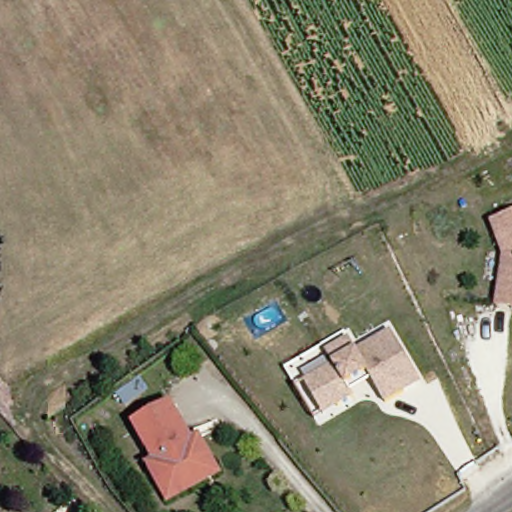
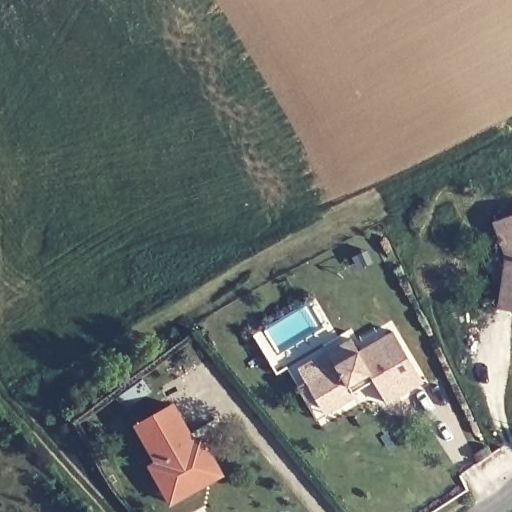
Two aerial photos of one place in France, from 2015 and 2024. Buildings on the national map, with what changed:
unchanged [(498,217),(512,213),(512,251),(498,217)]
unchanged [(512,261),(512,309),(506,308),(508,291),(512,261)]
unchanged [(295,380),(304,375),(334,357),(326,344),(349,331),(358,344),(392,324),(423,375),(387,397),(369,367),(348,379),(355,390),(339,400),(316,414),(295,380)]
unchanged [(150,469),(160,462),(142,425),(177,404),(199,443),(206,438),(220,462),(166,495),(150,469)]
unchanged [(166,495),(220,462),(228,477),(174,509),(166,495)]

